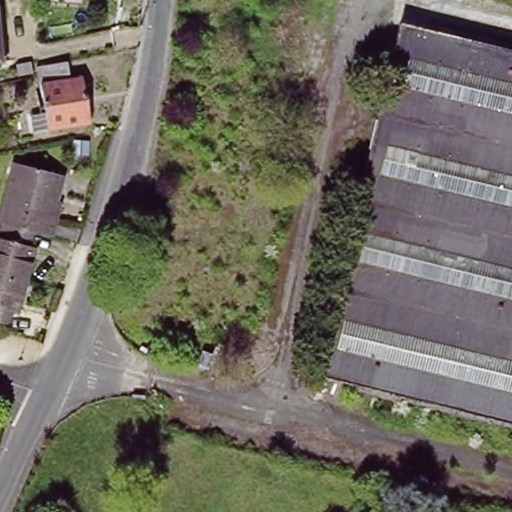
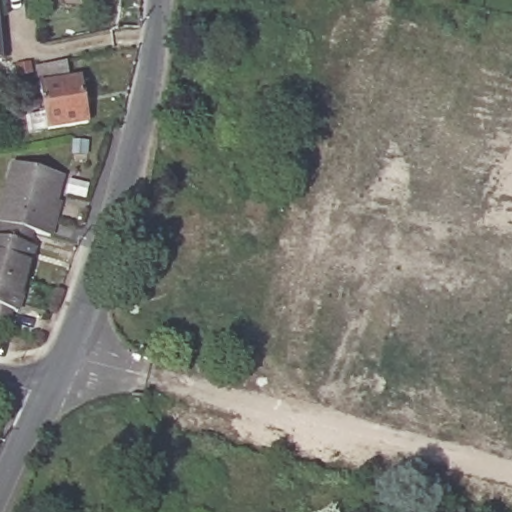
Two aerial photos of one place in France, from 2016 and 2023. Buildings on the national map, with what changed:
demolished [(405,0),(450,0),(512,15),(512,426),(313,377),(405,0)]
unchanged [(6,57),(0,58),(0,16),(6,57)]
unchanged [(68,61),(71,81),(83,80),(91,123),(49,131),(39,76),(38,67),(68,61)]
unchanged [(3,222),(21,163),(67,177),(60,201),(68,203),(57,238),(40,232),(3,222)]
unchanged [(3,222),(40,232),(35,246),(42,247),(32,281),(0,271),(0,233),(3,222)]
unchanged [(22,314),(15,312),(11,325),(0,321),(0,271),(32,281),(22,314)]

